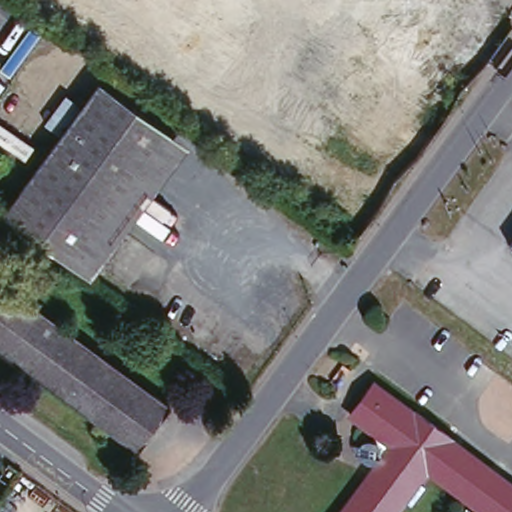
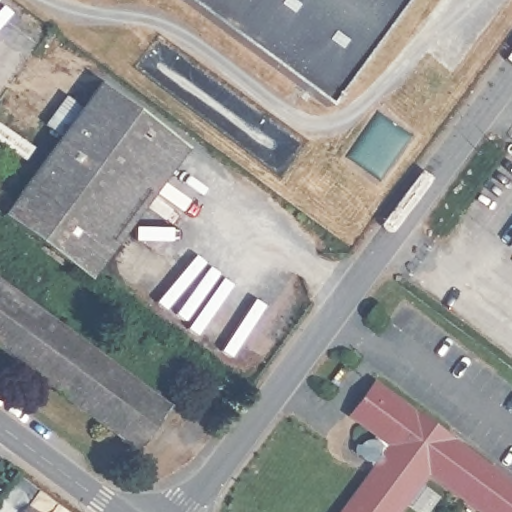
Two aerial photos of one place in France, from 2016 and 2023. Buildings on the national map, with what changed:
new [(172,0),(404,0),(321,111),(172,0)]
unchanged [(101,86),(178,144),(79,277),(3,220),(101,86)]
unchanged [(512,238),(512,249),(507,245),(512,238)]
unchanged [(172,408),(139,453),(0,350),(0,281),(172,408)]
unchanged [(406,510),(400,506),(396,512),(339,512),(370,472),(365,467),(362,460),(363,455),(366,451),(372,448),(378,447),(386,451),(391,444),(350,413),(374,381),(415,413),(417,410),(452,437),(450,439),(484,465),(461,496),(427,470),(413,488),(419,492),(406,510)]
unchanged [(512,512),(483,512),(461,496),(484,465),(512,485),(512,512)]

